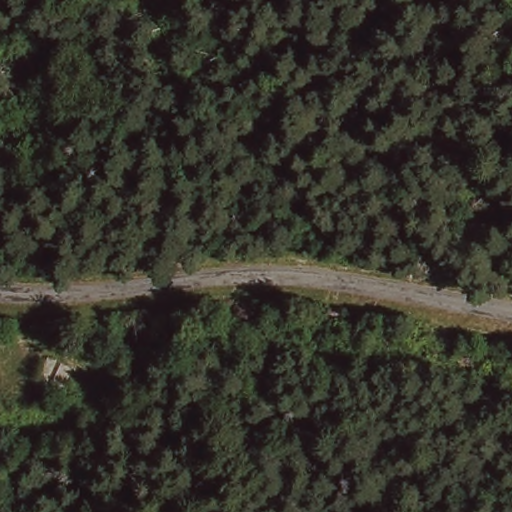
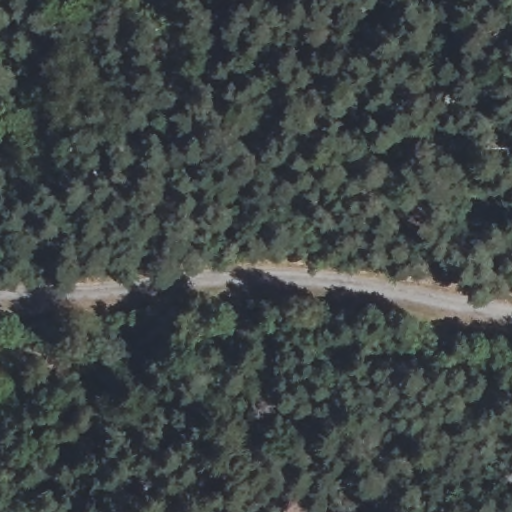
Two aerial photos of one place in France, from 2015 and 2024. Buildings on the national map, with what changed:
unchanged [(44,395),(34,386),(44,360),(69,368),(56,397),(44,395)]

